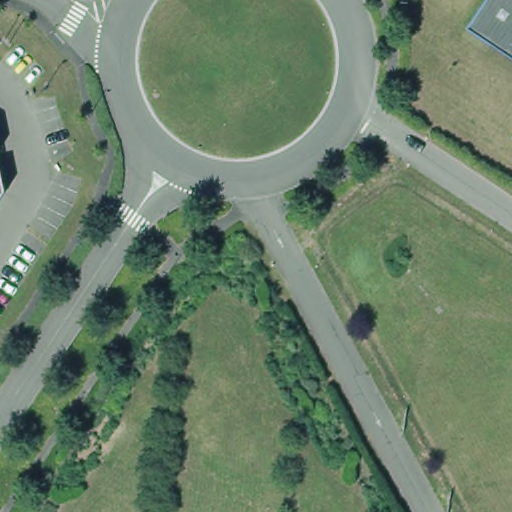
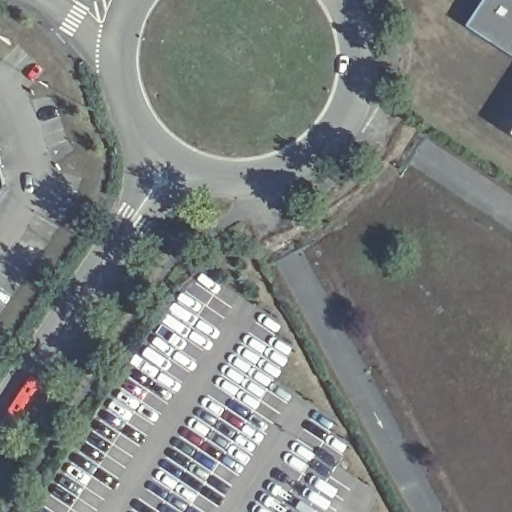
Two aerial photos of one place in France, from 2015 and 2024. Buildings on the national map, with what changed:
unchanged [(466,22),(479,0),(512,0),(512,53),(466,22)]
unchanged [(507,133),(512,126),(512,136),(507,133)]
unchanged [(0,195),(0,148),(7,184),(0,195)]

